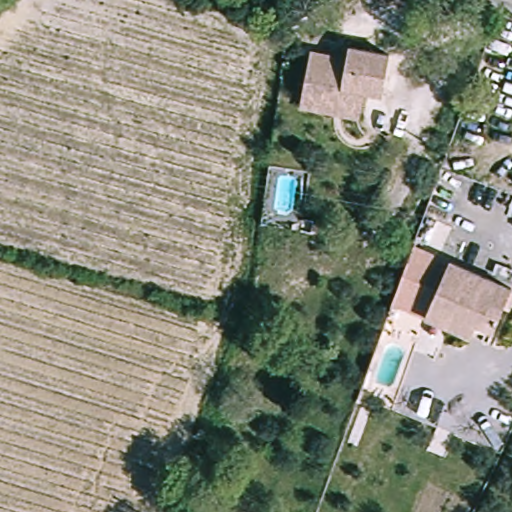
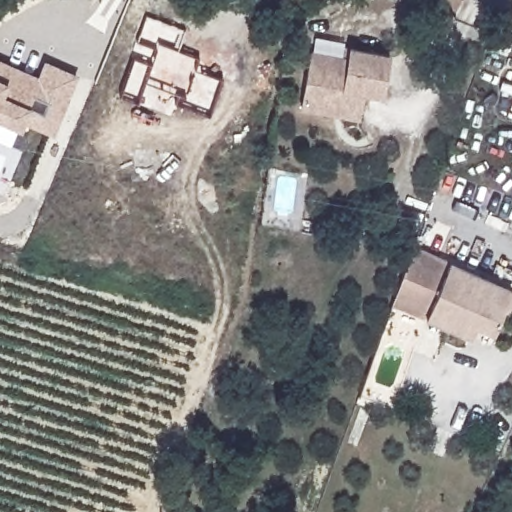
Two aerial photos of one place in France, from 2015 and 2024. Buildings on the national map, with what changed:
new [(134,56),(152,63),(158,47),(136,40),(146,14),(185,28),(178,49),(199,57),(196,69),(222,77),(209,114),(174,100),(177,92),(147,80),(138,102),(119,94),(134,56)]
unchanged [(355,115),(335,111),(304,107),(312,55),(349,60),(351,49),(373,52),(389,54),(383,91),(367,89),(362,115),(355,115)]
new [(24,120),(20,128),(0,119),(0,60),(38,76),(44,60),(78,75),(53,135),(24,120)]
unchanged [(428,317),(389,302),(413,246),(448,261),(428,317)]
unchanged [(448,261),(512,287),(493,331),(474,325),(470,336),(428,317),(448,261)]

